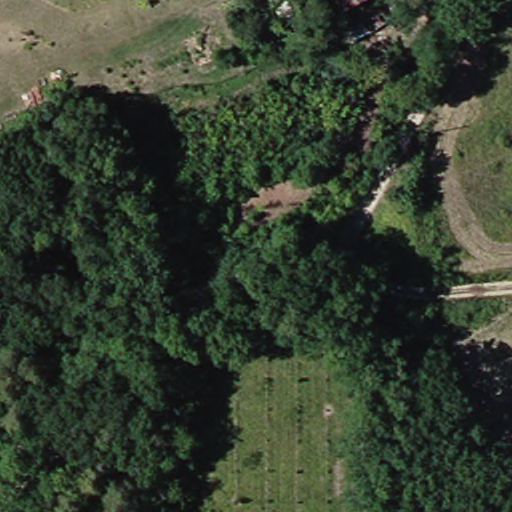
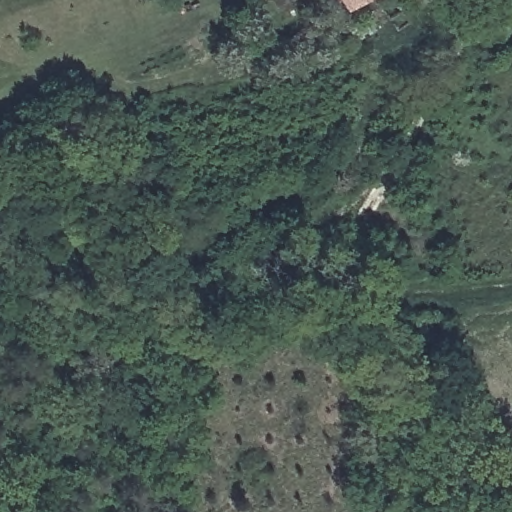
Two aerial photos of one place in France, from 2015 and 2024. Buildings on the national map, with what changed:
unchanged [(368,14),(340,27),(328,0),(362,0),(368,14)]
unchanged [(397,24),(350,48),(340,27),(368,14),(386,4),(397,24)]

